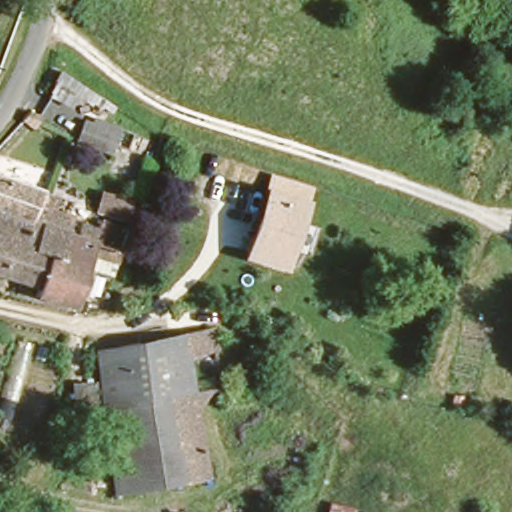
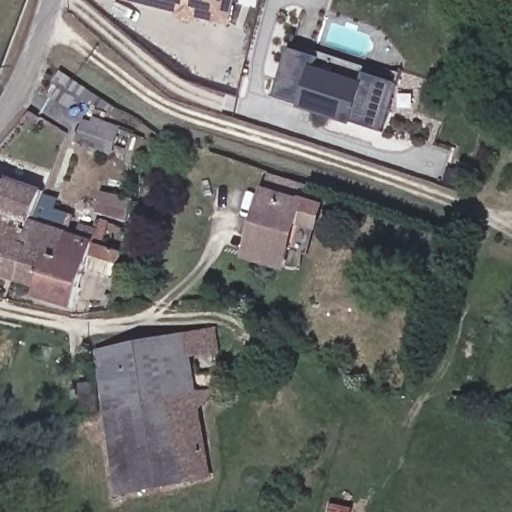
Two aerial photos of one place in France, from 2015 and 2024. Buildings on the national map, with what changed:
new [(232,0),(227,21),(196,15),(123,0),(232,0)]
new [(195,20),(179,17),(180,11),(196,15),(195,20)]
new [(377,120),(273,91),(288,44),(315,52),(312,64),(358,77),(362,65),(391,74),(377,120)]
unchanged [(0,176),(0,167),(4,169),(0,176)]
unchanged [(0,201),(0,176),(4,169),(17,174),(42,182),(33,214),(0,201)]
unchanged [(273,183),(310,196),(292,256),(255,244),(273,183)]
unchanged [(99,184),(112,189),(107,208),(93,202),(99,184)]
unchanged [(42,292),(45,282),(0,268),(0,201),(33,214),(26,236),(87,259),(73,302),(42,292)]
unchanged [(87,259),(26,236),(33,214),(70,227),(73,218),(109,232),(100,263),(87,259)]
unchanged [(188,391),(144,396),(100,401),(92,343),(208,328),(210,341),(218,387),(188,391)]
unchanged [(200,472),(160,477),(144,396),(188,391),(200,472)]
unchanged [(144,396),(160,477),(114,484),(100,401),(144,396)]

